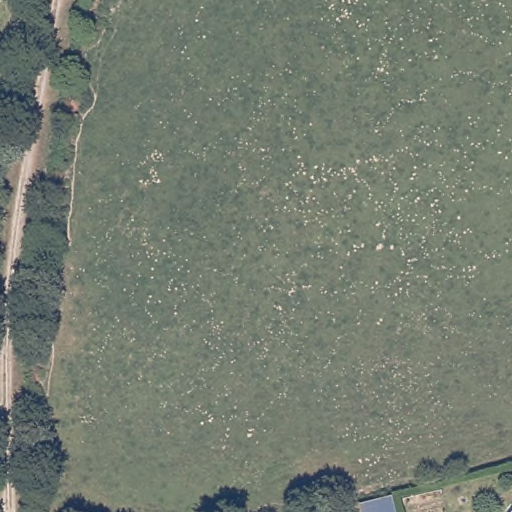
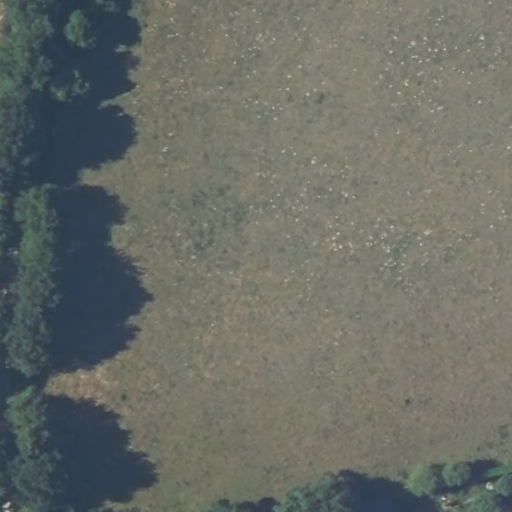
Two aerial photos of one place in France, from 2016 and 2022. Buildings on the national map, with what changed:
unchanged [(372,512),(370,499),(393,493),(397,510),(386,512),(372,512)]

